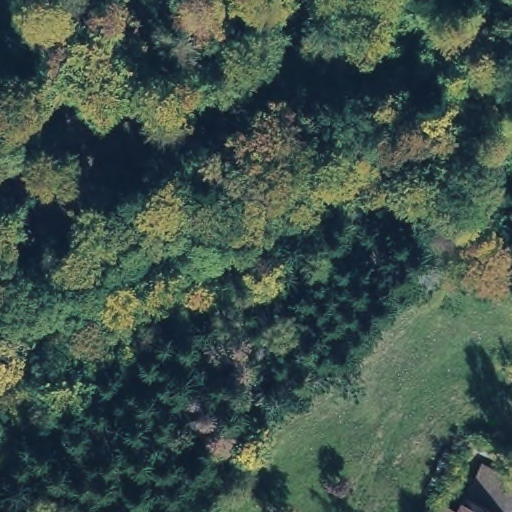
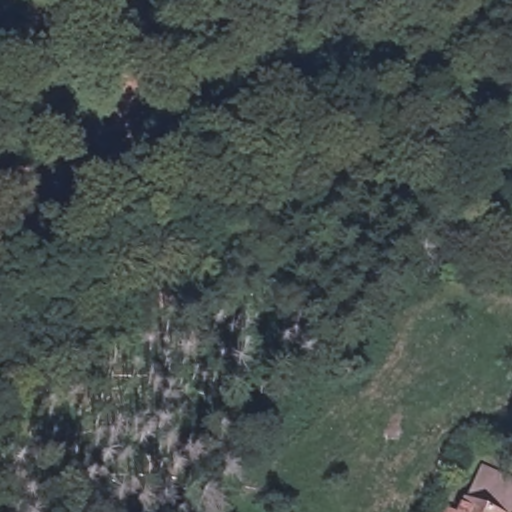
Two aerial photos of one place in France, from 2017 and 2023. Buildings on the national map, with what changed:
unchanged [(454,511),(476,467),(512,482),(512,498),(505,512),(438,512),(441,506),(454,511)]

